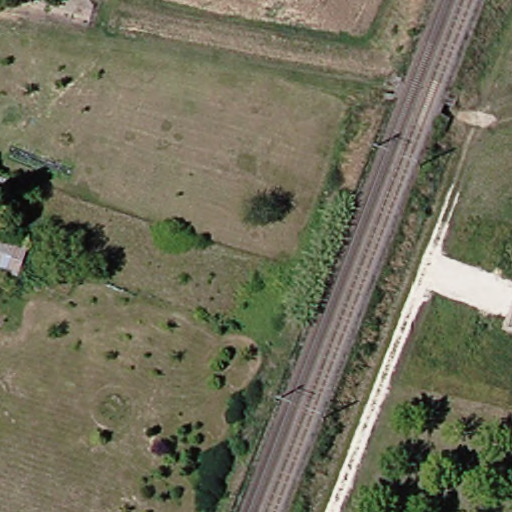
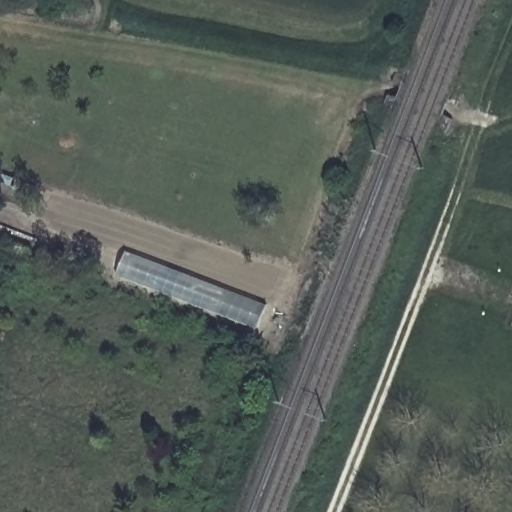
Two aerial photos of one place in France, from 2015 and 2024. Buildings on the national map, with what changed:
unchanged [(0,263),(0,237),(21,245),(14,268),(0,263)]
new [(255,329),(116,274),(125,252),(263,307),(255,329)]

